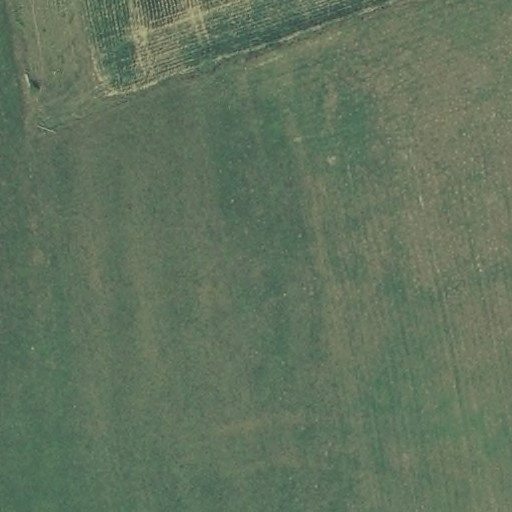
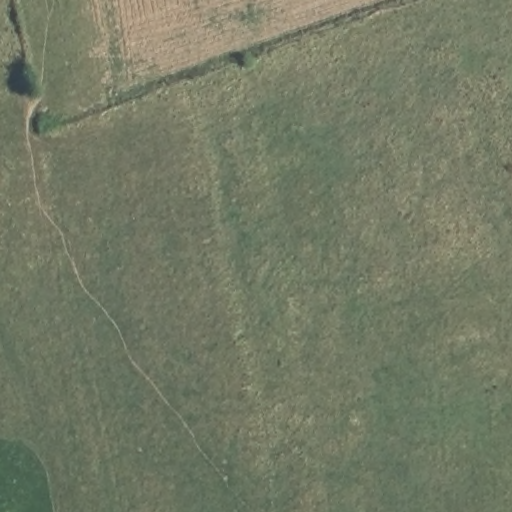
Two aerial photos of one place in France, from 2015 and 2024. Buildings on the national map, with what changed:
[]

